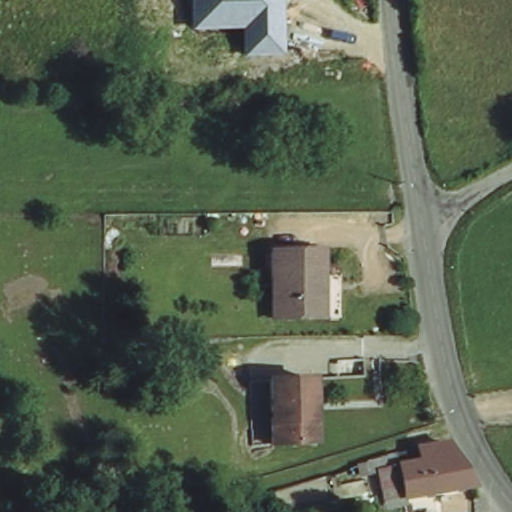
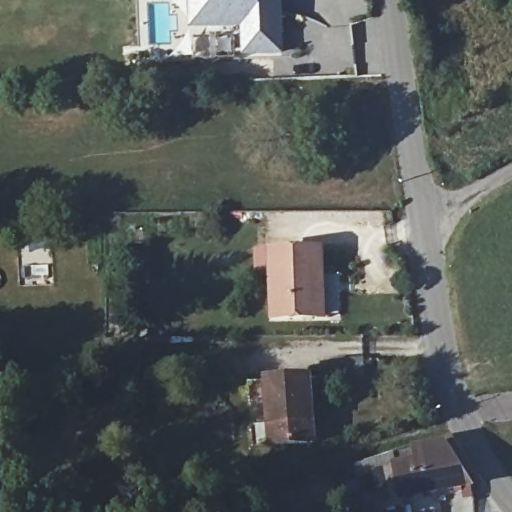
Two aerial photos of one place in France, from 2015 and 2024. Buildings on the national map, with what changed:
unchanged [(285,55),(244,56),(241,28),(189,31),(188,0),(282,0),(285,55)]
unchanged [(274,250),(323,248),(323,275),(316,276),(317,318),(275,320),(274,250)]
unchanged [(321,438),(279,439),(278,419),(258,419),(257,375),(279,375),(320,374),(321,438)]
unchanged [(443,445),(484,484),(372,500),(371,471),(417,465),(414,452),(443,445)]

